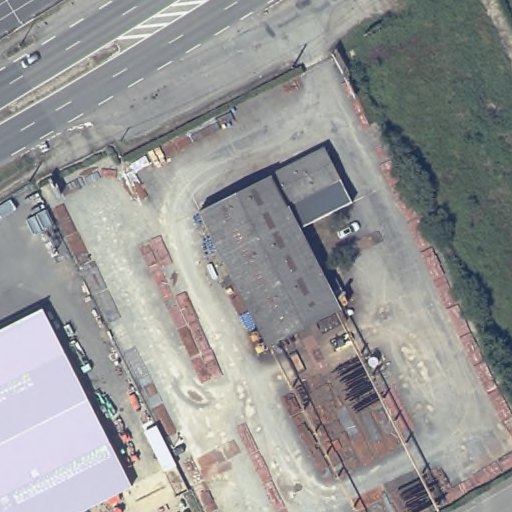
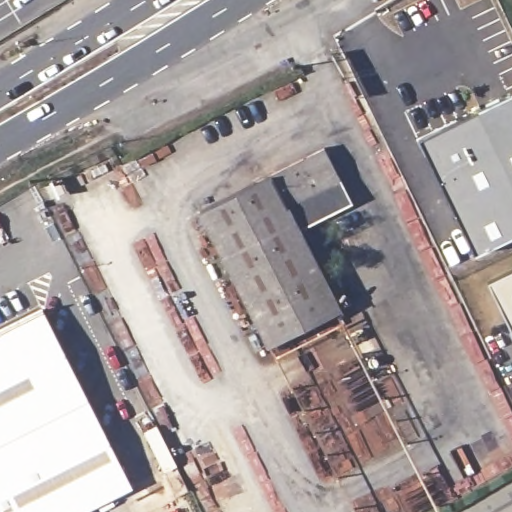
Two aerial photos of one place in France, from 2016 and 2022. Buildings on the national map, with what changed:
demolished [(0,46),(0,0),(70,0),(0,46)]
new [(415,137),(512,91),(512,234),(472,253),(415,137)]
unchanged [(271,180),(271,177),(323,151),(352,207),(298,234),(339,315),(268,351),(199,217),(271,180)]
demolished [(104,161),(122,196),(80,218),(61,183),(104,161)]
new [(512,337),(485,282),(512,269),(512,337)]
unchanged [(40,308),(79,386),(131,487),(81,512),(0,512),(0,329),(40,308)]

